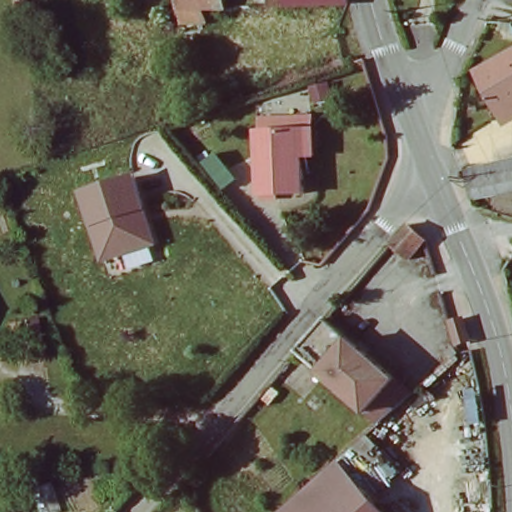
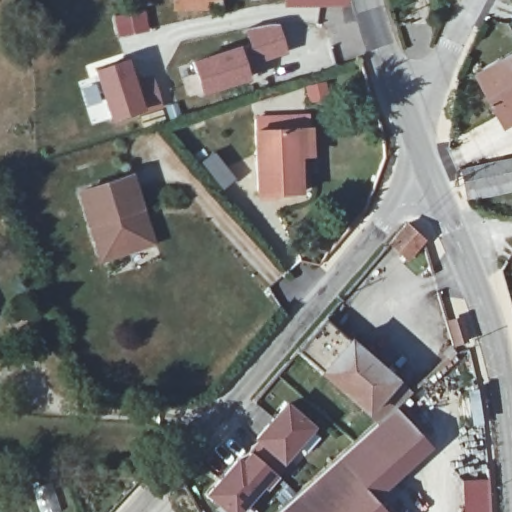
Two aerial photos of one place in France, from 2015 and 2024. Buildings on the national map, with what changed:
unchanged [(165,0),(209,0),(210,16),(167,19),(165,0)]
demolished [(312,3),(260,9),(259,0),(335,0),(312,3)]
new [(349,5),(282,5),(282,0),(347,0),(349,5)]
new [(145,10),(148,33),(117,40),(114,15),(145,10)]
new [(238,46),(250,45),(245,27),(277,24),(287,52),(246,71),(247,79),(202,95),(190,59),(238,46)]
unchanged [(472,69),(512,47),(512,100),(494,109),(472,69)]
new [(127,57),(133,77),(149,74),(161,105),(143,110),(109,122),(93,70),(127,57)]
unchanged [(297,190),(281,190),(255,192),(254,160),(253,127),(294,125),(307,125),(308,153),(296,154),(296,179),(297,190)]
unchanged [(461,192),(458,172),(512,164),(512,184),(461,192)]
unchanged [(100,243),(83,191),(133,175),(142,204),(137,205),(141,219),(147,217),(155,240),(119,251),(105,256),(100,243)]
unchanged [(416,215),(434,231),(419,249),(401,234),(416,215)]
unchanged [(474,308),(480,329),(469,332),(463,312),(474,308)]
unchanged [(394,416),(384,424),(375,415),(372,412),(344,387),(318,365),(301,350),(325,324),(329,320),(344,333),(379,365),(399,382),(415,396),(394,416)]
new [(320,421),(275,473),(284,481),(255,512),(240,512),(213,487),(293,395),(320,421)]
new [(384,424),(394,416),(400,410),(433,447),(374,500),(341,462),(319,480),(316,477),(380,420),(384,424)]
unchanged [(283,512),(341,462),(384,512),(283,512)]

